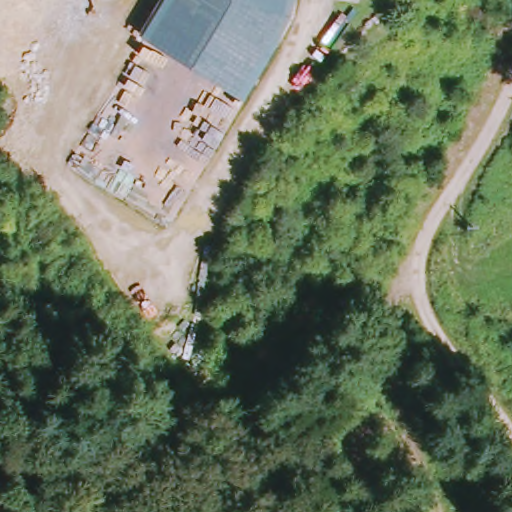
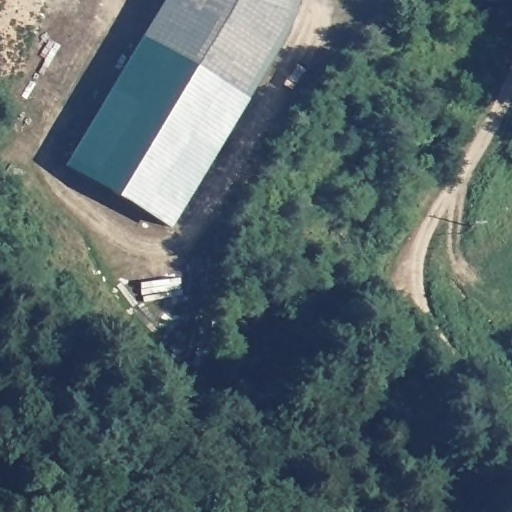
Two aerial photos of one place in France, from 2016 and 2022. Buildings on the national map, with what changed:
unchanged [(285,49),(250,106),(148,42),(174,0),(304,0),(300,16),(285,49)]
new [(170,230),(65,168),(143,39),(148,42),(245,103),(170,230)]

